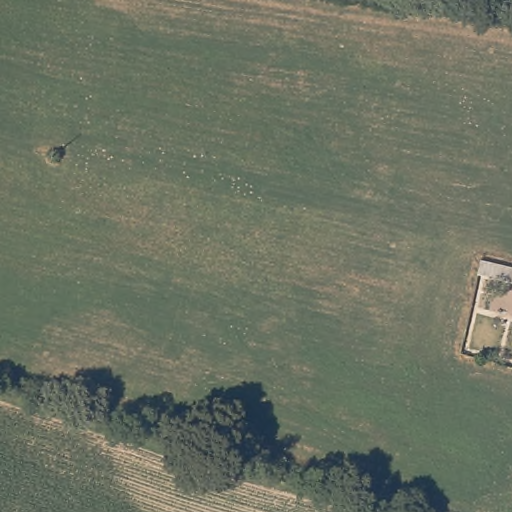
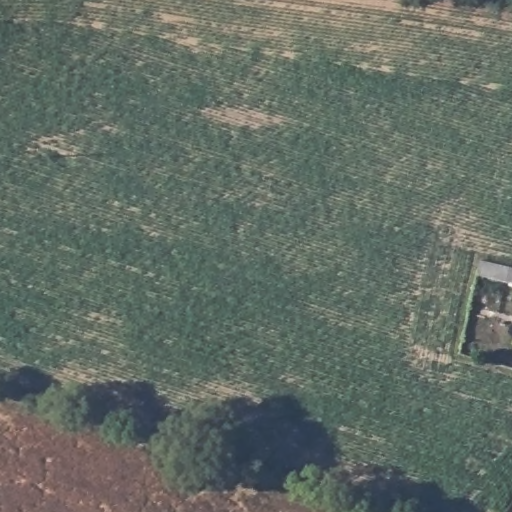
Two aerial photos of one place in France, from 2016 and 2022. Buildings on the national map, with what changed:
unchanged [(512,281),(496,278),(500,263),(512,265),(512,281)]

